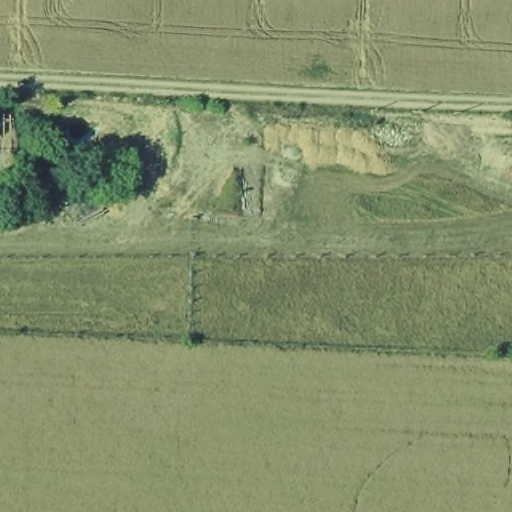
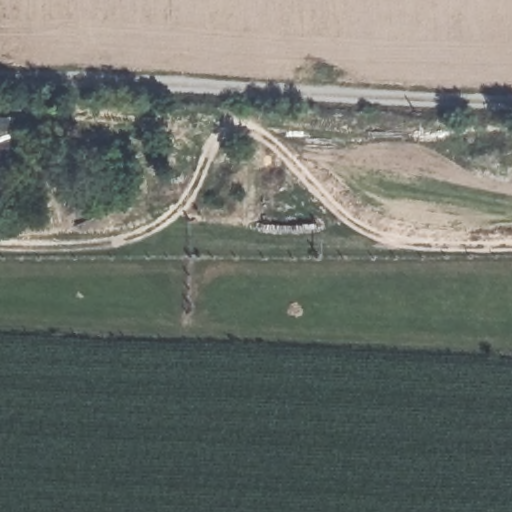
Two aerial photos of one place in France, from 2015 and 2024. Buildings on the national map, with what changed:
unchanged [(12,191),(0,191),(0,116),(12,116),(12,191)]

